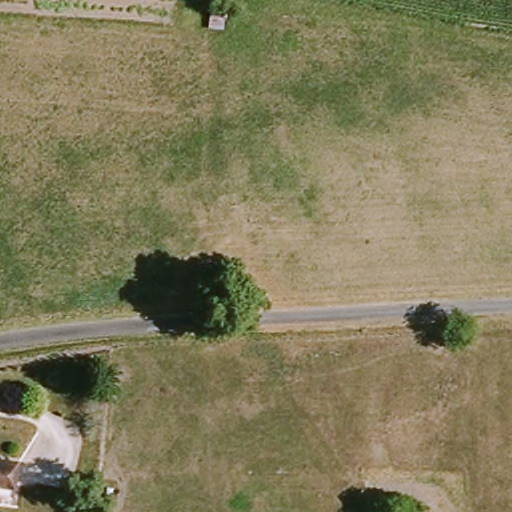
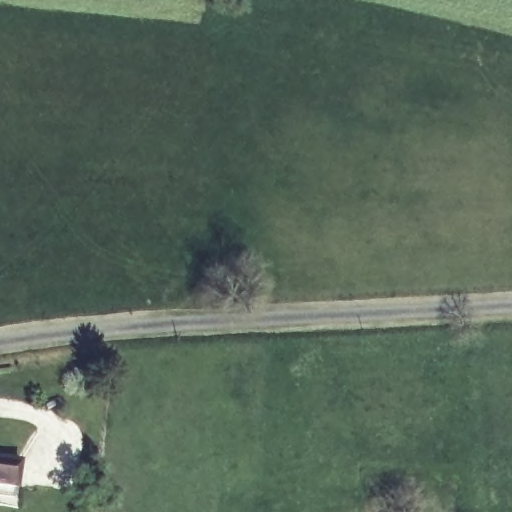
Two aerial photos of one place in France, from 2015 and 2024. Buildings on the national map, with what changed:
unchanged [(15,484),(0,482),(0,456),(18,459),(15,484)]

